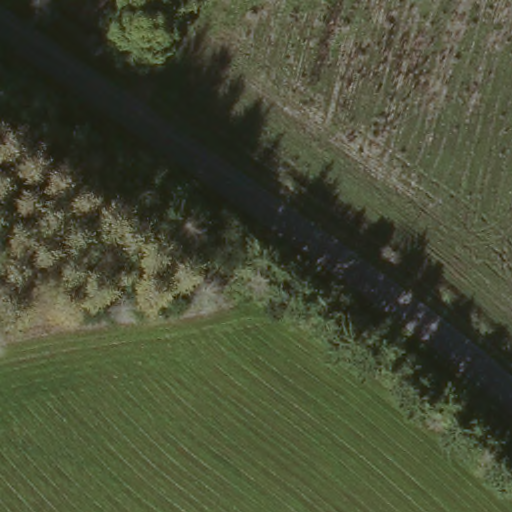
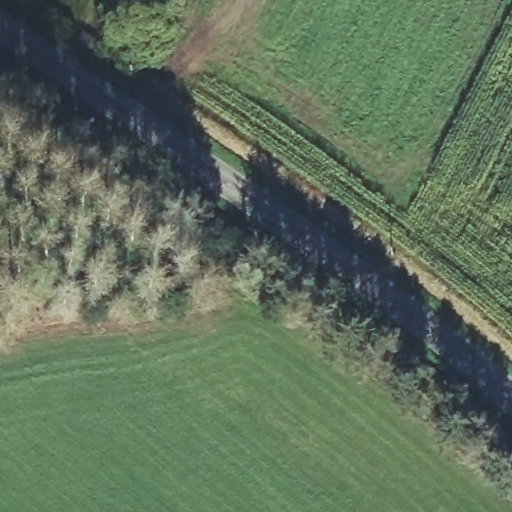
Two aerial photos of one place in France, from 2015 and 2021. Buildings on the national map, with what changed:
[]

